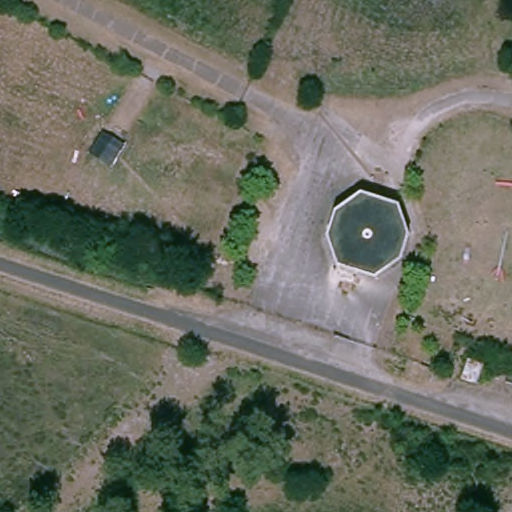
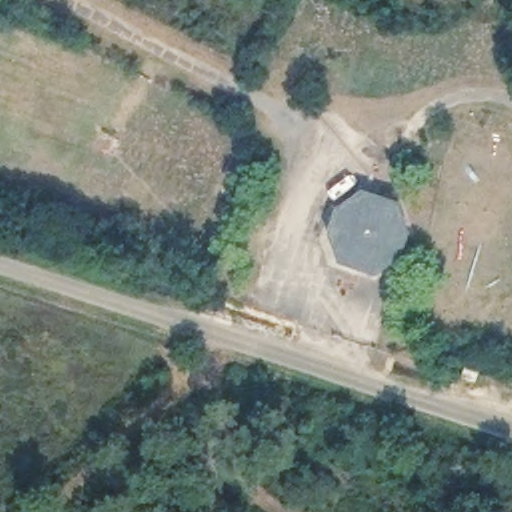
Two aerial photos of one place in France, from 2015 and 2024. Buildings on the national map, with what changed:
unchanged [(331,209),(359,188),(398,200),(409,231),(400,259),(374,278),(334,265),(323,235),(331,209)]

